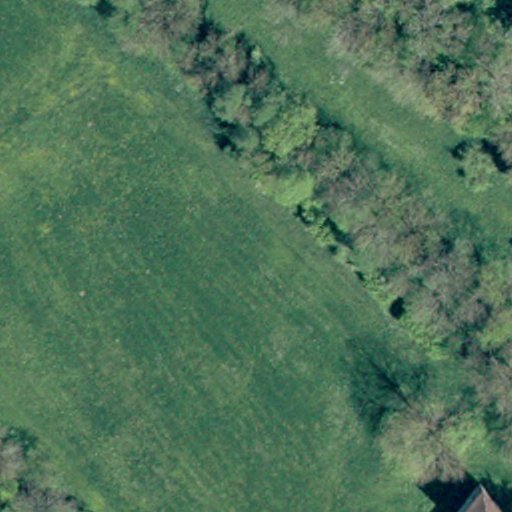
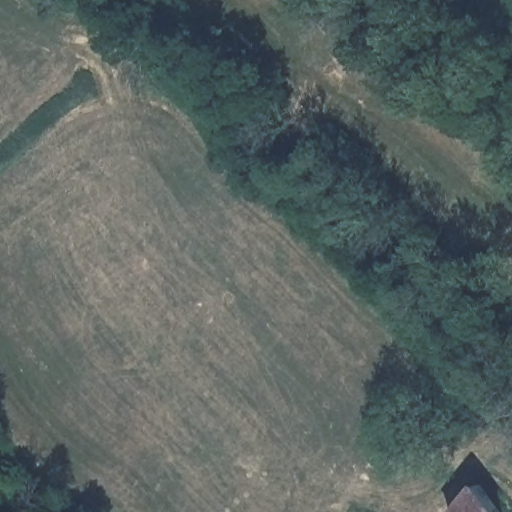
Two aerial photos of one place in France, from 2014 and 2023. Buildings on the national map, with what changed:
unchanged [(501,37),(512,24),(512,44),(511,45),(501,37)]
unchanged [(496,512),(450,512),(475,483),(496,512)]

